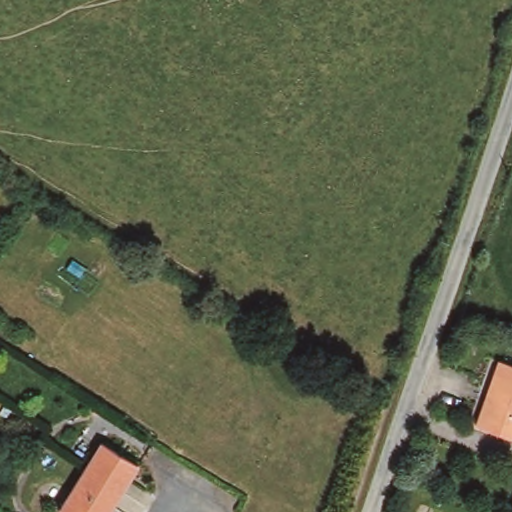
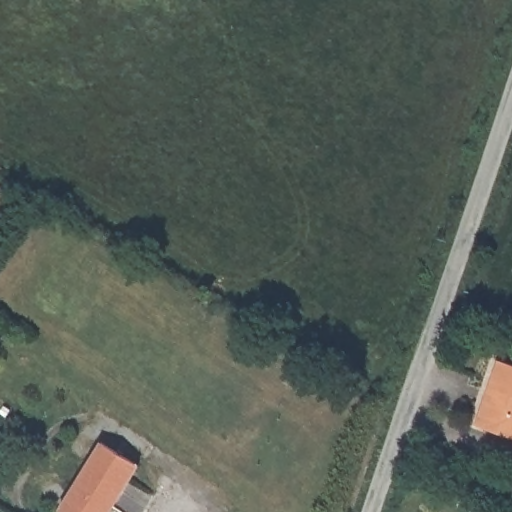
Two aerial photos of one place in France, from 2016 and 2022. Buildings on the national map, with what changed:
unchanged [(499,359),(512,364),(512,437),(476,424),(499,359)]
unchanged [(102,442),(139,464),(110,512),(63,512),(60,510),(102,442)]

